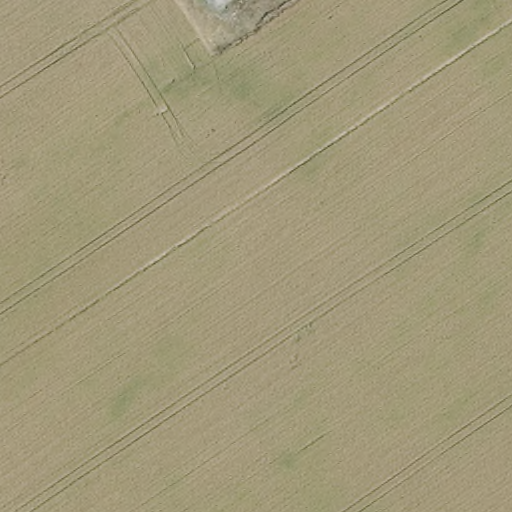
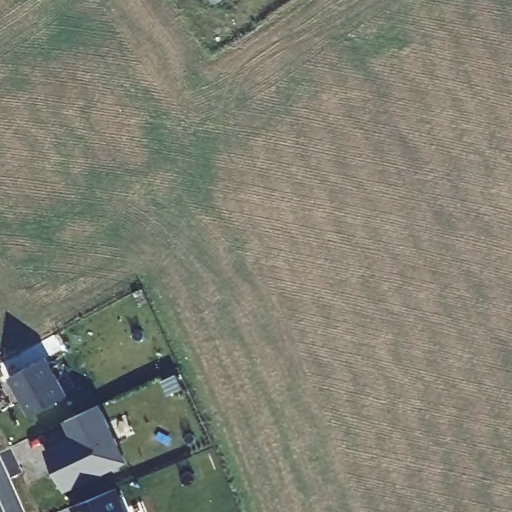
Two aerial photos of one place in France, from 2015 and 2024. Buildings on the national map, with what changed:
new [(47,358),(67,397),(32,416),(10,378),(47,358)]
new [(47,451),(74,439),(66,422),(100,405),(127,462),(65,491),(47,451)]
new [(126,512),(77,512),(75,506),(117,489),(126,512)]

